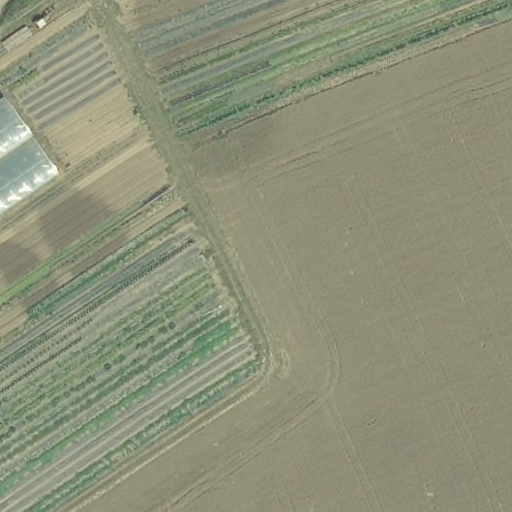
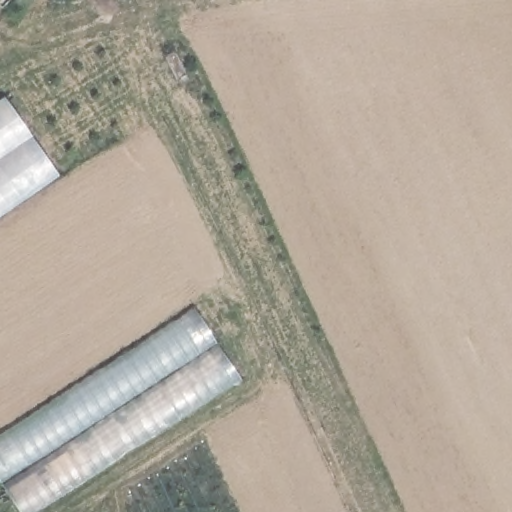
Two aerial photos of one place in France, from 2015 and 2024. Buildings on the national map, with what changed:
unchanged [(59,176),(0,217),(0,100),(5,97),(59,176)]
new [(0,485),(0,437),(193,307),(238,378),(37,512),(17,512),(0,485)]

